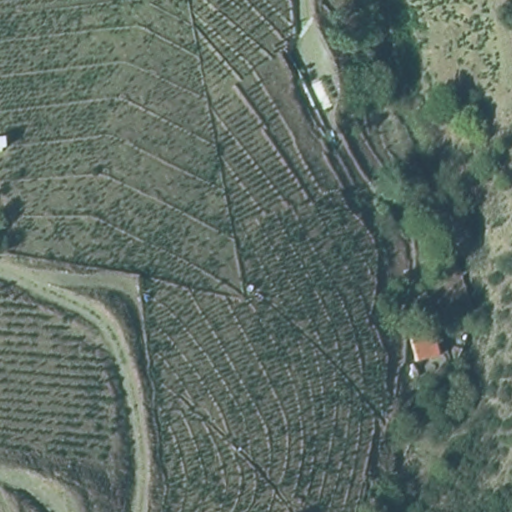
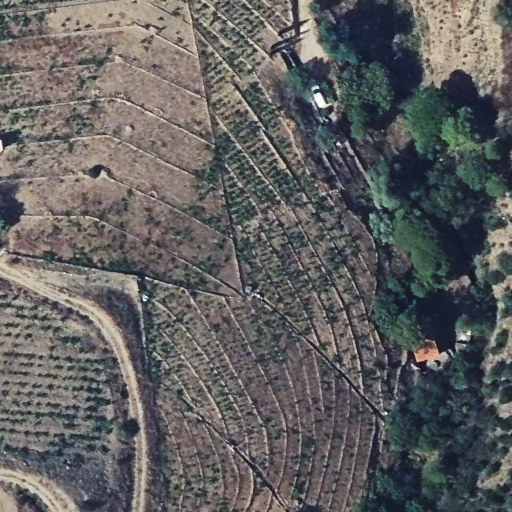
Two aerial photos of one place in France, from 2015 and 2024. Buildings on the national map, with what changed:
unchanged [(445,354),(420,366),(412,337),(435,328),(445,354)]

